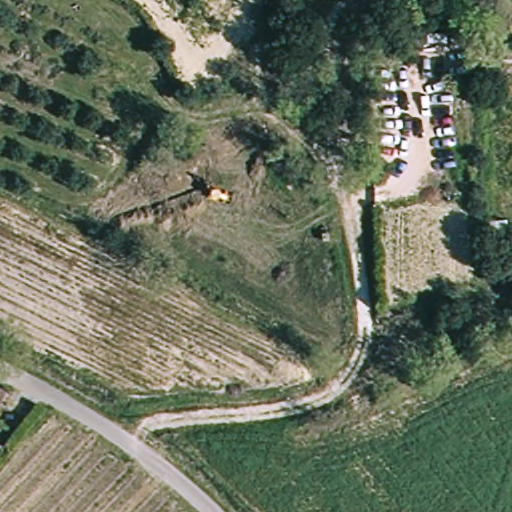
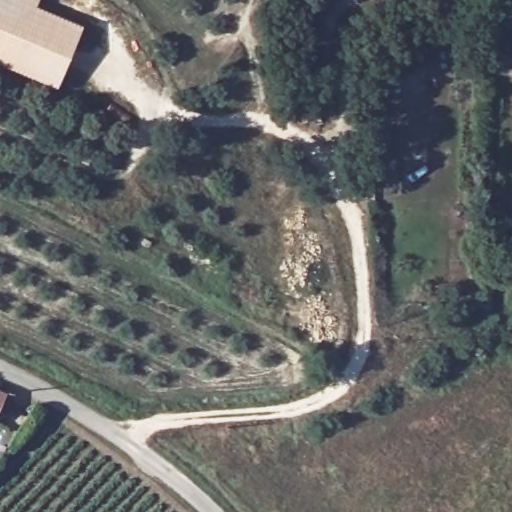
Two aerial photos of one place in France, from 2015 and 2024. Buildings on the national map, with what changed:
new [(41,15),(88,37),(60,95),(0,66),(0,0),(48,0),(41,15)]
unchanged [(0,410),(0,393),(8,397),(0,410)]

